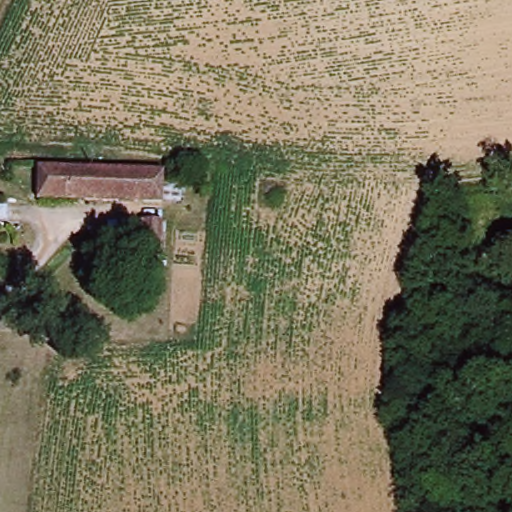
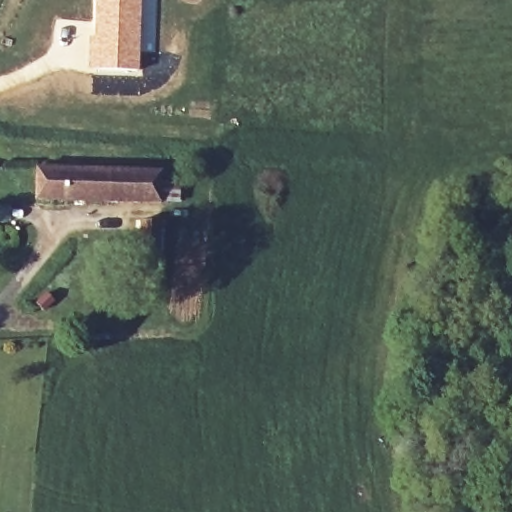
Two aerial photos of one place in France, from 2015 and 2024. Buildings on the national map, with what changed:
new [(89,35),(94,35),(96,0),(156,0),(155,17),(143,16),(141,71),(89,70),(89,35)]
unchanged [(33,205),(32,171),(160,168),(161,179),(180,178),(182,199),(162,201),(33,205)]
unchanged [(178,312),(163,312),(164,249),(179,249),(178,312)]

